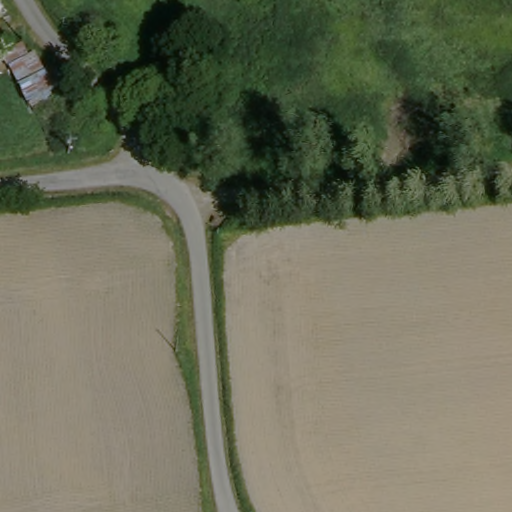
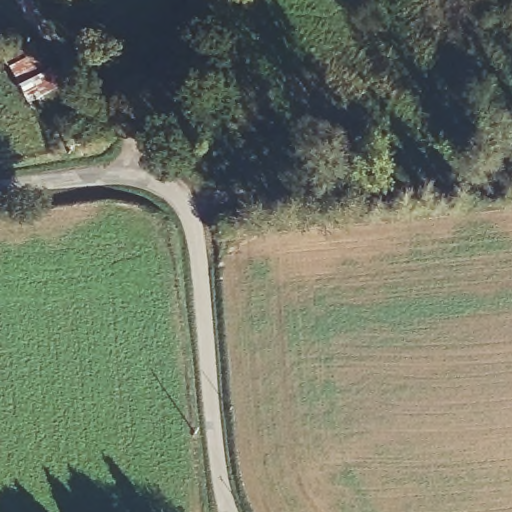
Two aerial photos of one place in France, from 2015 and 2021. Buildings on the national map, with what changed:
unchanged [(0,61),(13,54),(19,65),(25,62),(34,82),(29,85),(12,95),(0,74),(0,61)]

